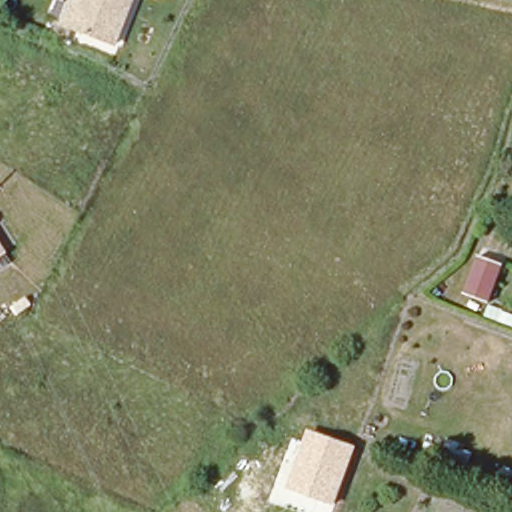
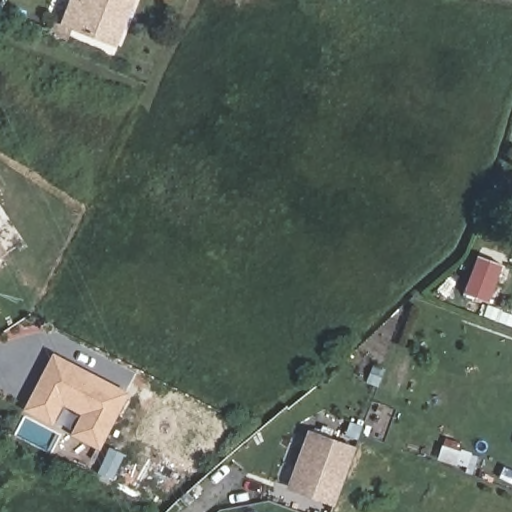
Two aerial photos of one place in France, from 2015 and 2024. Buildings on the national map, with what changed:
unchanged [(65,26),(75,2),(83,5),(85,0),(134,0),(117,46),(65,26)]
unchanged [(0,241),(8,254),(0,259),(0,241)]
unchanged [(502,263),(491,303),(466,296),(478,257),(502,263)]
new [(27,408),(53,357),(124,393),(97,443),(75,432),(84,412),(61,400),(50,420),(27,408)]
unchanged [(334,508),(287,491),(308,428),(358,447),(334,508)]

